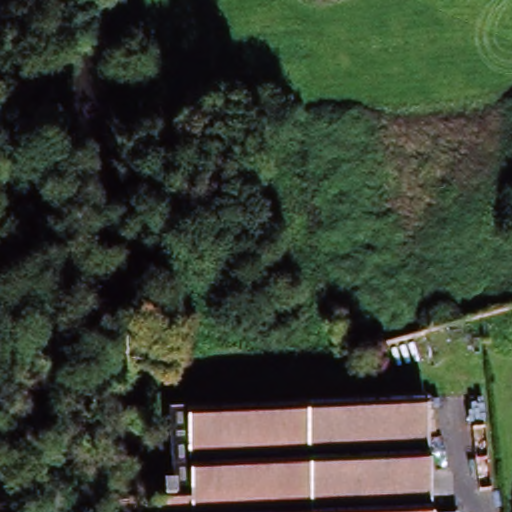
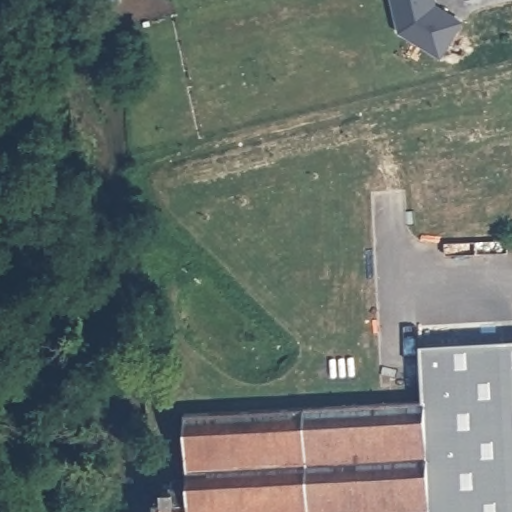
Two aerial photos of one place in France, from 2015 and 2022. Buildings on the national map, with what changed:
new [(512,512),(420,512),(407,396),(405,347),(512,348),(512,512)]
unchanged [(407,396),(420,512),(304,512),(293,411),(357,403),(395,398),(407,396)]
unchanged [(159,501),(152,426),(293,411),(304,512),(150,512),(150,502),(159,501)]

